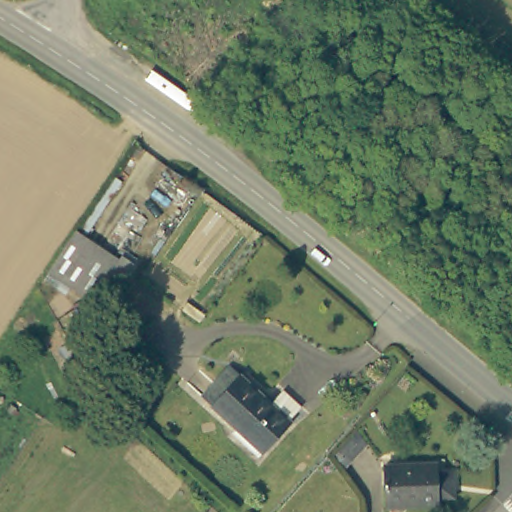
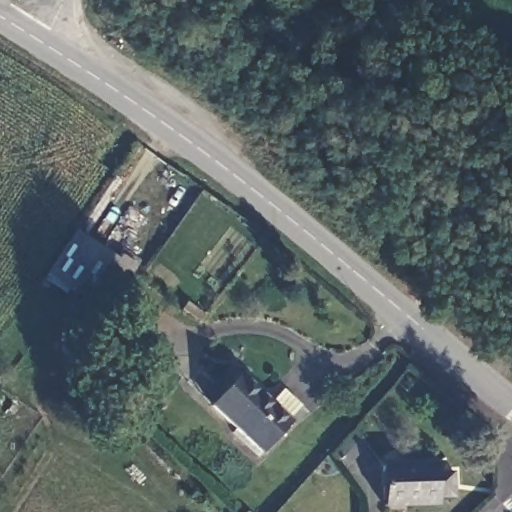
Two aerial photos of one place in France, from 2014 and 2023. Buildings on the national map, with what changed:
unchanged [(119,253),(132,263),(119,283),(105,273),(87,299),(44,269),(72,228),(115,258),(119,253)]
unchanged [(240,366),(288,413),(260,442),(212,395),(240,366)]
unchanged [(346,447),(352,453),(347,460),(340,454),(346,447)]
unchanged [(382,504),(379,463),(432,461),(433,468),(449,467),(450,490),(434,490),(435,501),(382,504)]
unchanged [(256,512),(251,512),(254,509),(256,512)]

